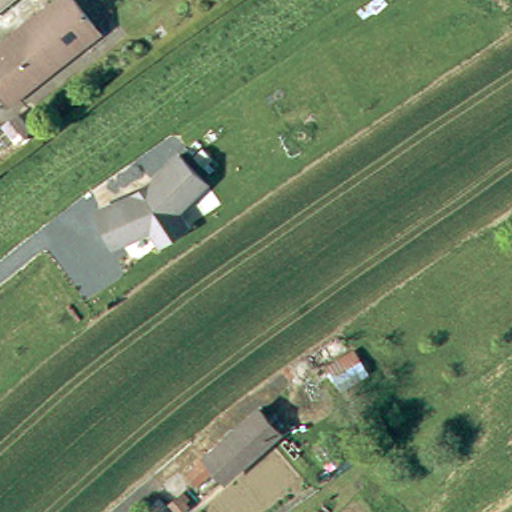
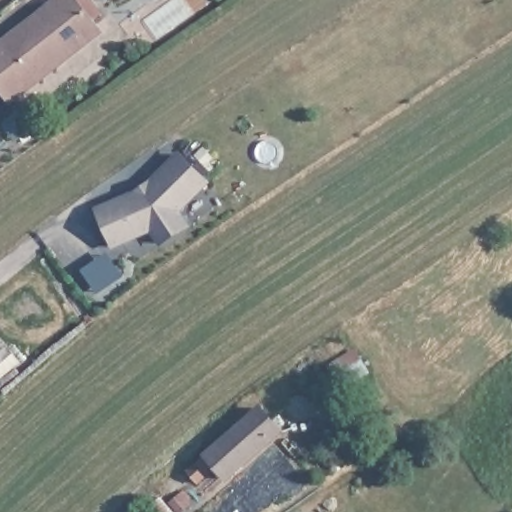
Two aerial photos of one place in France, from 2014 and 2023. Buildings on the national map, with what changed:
unchanged [(58,0),(76,0),(101,32),(10,100),(0,86),(0,43),(58,0)]
unchanged [(130,194),(149,183),(179,152),(211,184),(181,214),(189,229),(160,247),(151,232),(113,250),(96,208),(130,194)]
unchanged [(252,410),(271,432),(223,473),(203,450),(252,410)]
unchanged [(216,476),(202,486),(187,467),(201,457),(216,476)]
unchanged [(309,512),(314,508),(317,512),(309,512)]

